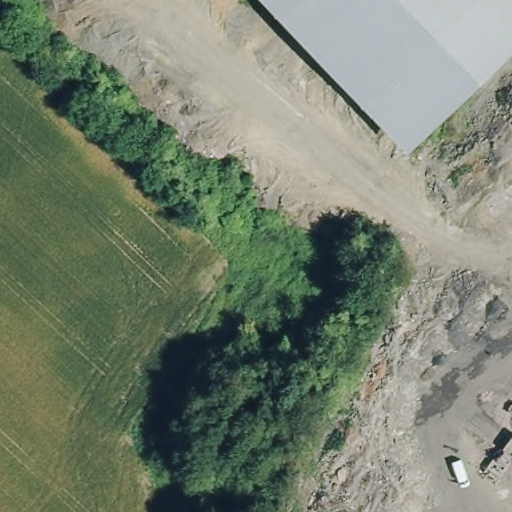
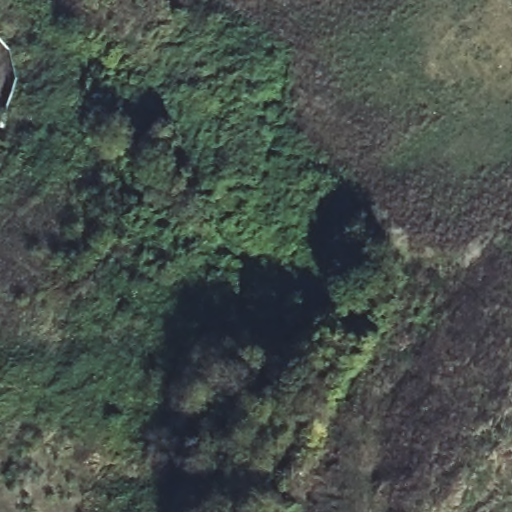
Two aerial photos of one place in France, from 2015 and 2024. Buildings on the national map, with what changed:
demolished [(512,63),(408,159),(255,0),(512,0),(512,63)]

